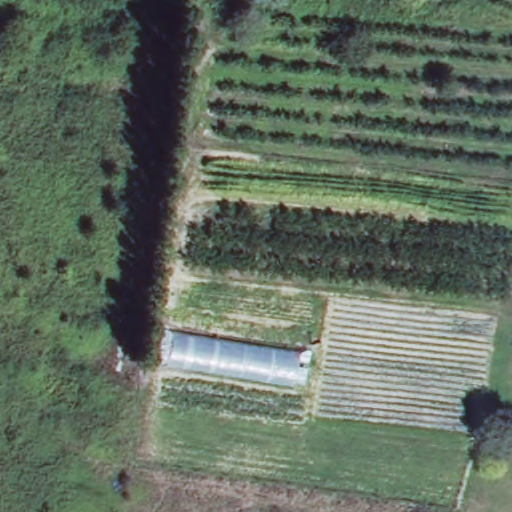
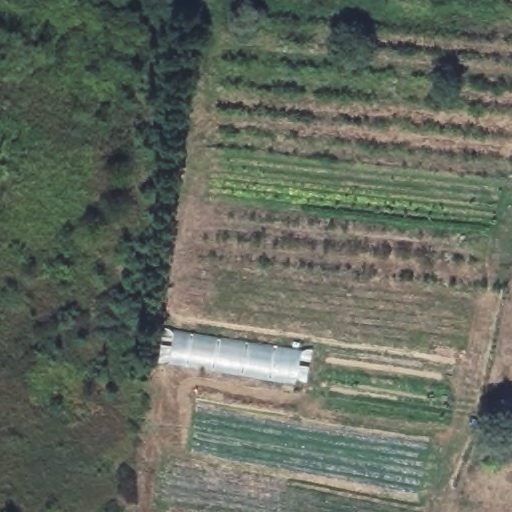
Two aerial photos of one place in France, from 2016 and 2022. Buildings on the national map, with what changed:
unchanged [(300,390),(158,365),(165,329),(307,354),(300,390)]

